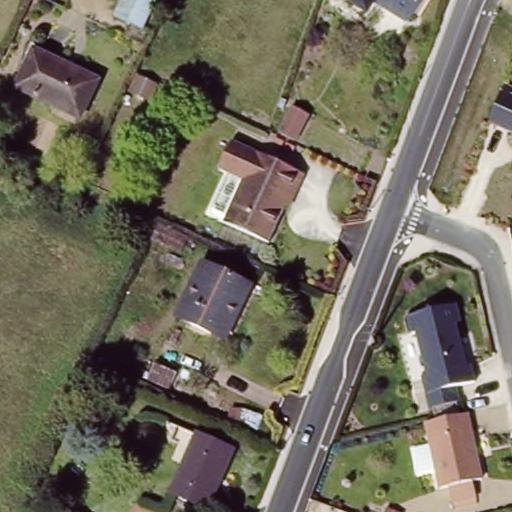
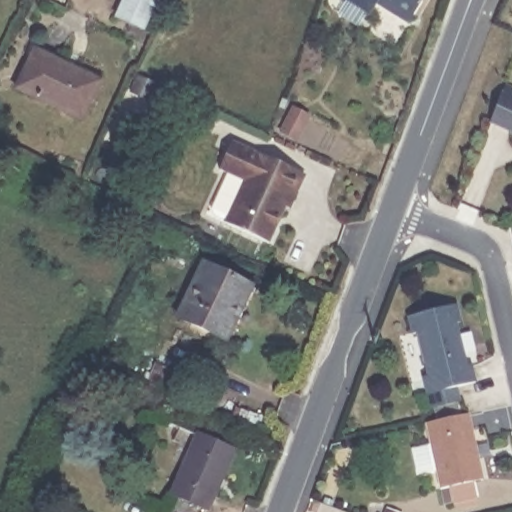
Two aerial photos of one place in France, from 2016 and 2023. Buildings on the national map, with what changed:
unchanged [(153,0),(137,35),(110,21),(111,17),(119,0),(153,0)]
unchanged [(373,0),(366,11),(347,0),(419,0),(407,21),(373,0)]
unchanged [(92,78),(75,117),(9,88),(27,49),(92,78)]
unchanged [(503,85),(512,90),(512,131),(488,120),(503,85)]
unchanged [(308,119),(297,144),(281,136),(292,111),(308,119)]
unchanged [(300,196),(295,195),(272,246),(227,224),(246,182),(226,175),(239,147),(307,178),(300,196)]
unchanged [(235,301),(228,297),(212,330),(170,310),(195,257),(245,280),(235,301)]
unchanged [(457,301),(462,320),(455,322),(465,362),(471,361),(476,378),(453,383),(458,402),(426,410),(418,376),(426,375),(415,332),(408,334),(404,316),(457,301)]
unchanged [(468,413),(481,477),(438,487),(433,463),(415,466),(410,447),(429,443),(424,424),(468,413)]
unchanged [(200,507),(164,491),(190,432),(227,448),(200,507)]

